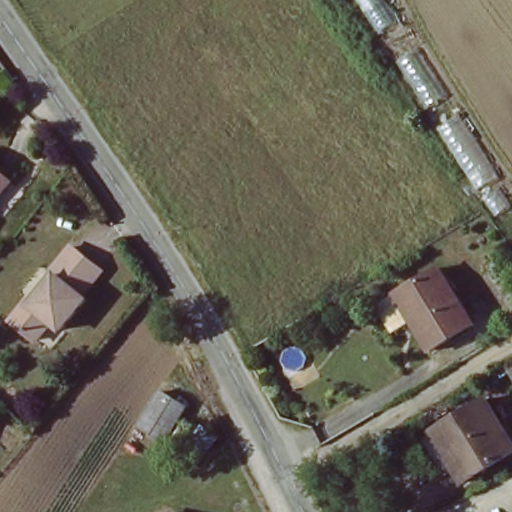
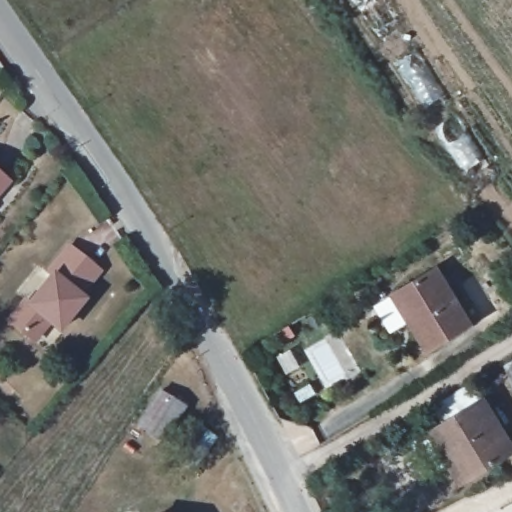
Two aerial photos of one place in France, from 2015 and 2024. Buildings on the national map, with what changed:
unchanged [(10,179),(0,191),(0,170),(10,179)]
unchanged [(95,265),(75,291),(81,296),(58,326),(47,318),(32,338),(3,318),(19,297),(25,302),(49,271),(43,266),(64,240),(95,265)]
unchanged [(469,318),(424,346),(405,316),(389,290),(401,282),(435,260),(469,318)]
unchanged [(512,361),(512,379),(504,366),(512,361)]
unchanged [(189,410),(167,446),(139,429),(162,392),(189,410)]
unchanged [(445,420),(486,395),(512,437),(512,450),(468,475),(458,480),(428,430),(445,420)]
unchanged [(198,421),(218,435),(193,472),(173,456),(198,421)]

